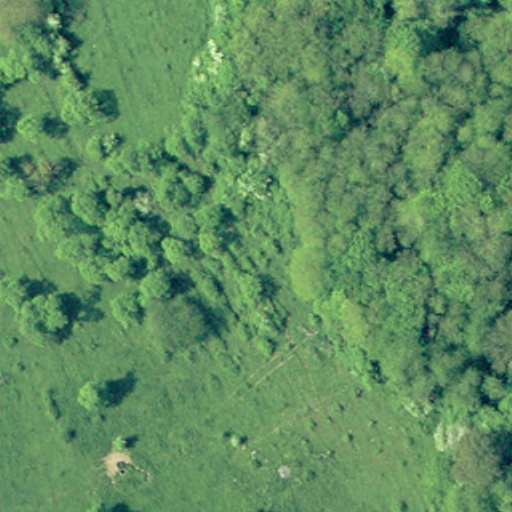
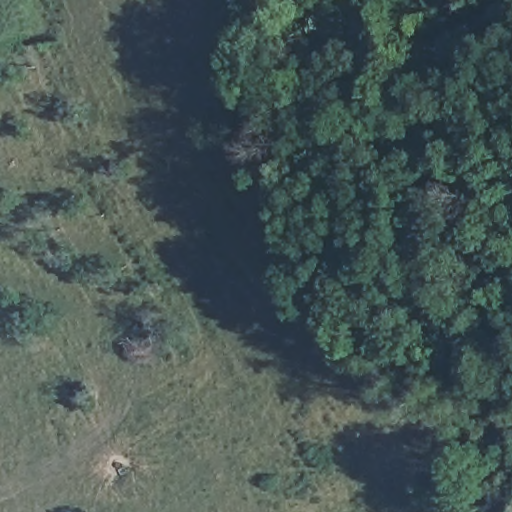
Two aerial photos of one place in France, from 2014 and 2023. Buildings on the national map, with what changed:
[]

